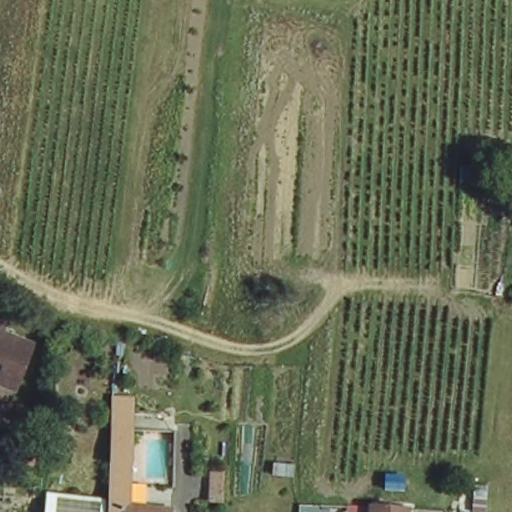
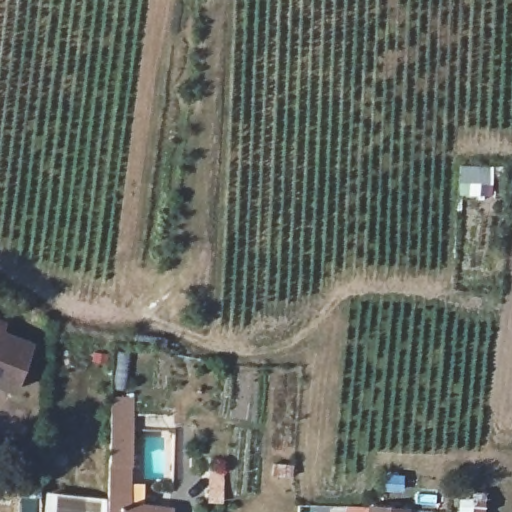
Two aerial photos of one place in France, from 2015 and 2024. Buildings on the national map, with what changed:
unchanged [(5,323),(1,333),(31,345),(16,388),(0,383),(0,322),(5,323)]
unchanged [(373,501),(414,503),(414,509),(446,511),(445,512),(372,512),(373,505),(373,501)]
unchanged [(145,509),(172,512),(110,512),(111,505),(145,509)]

